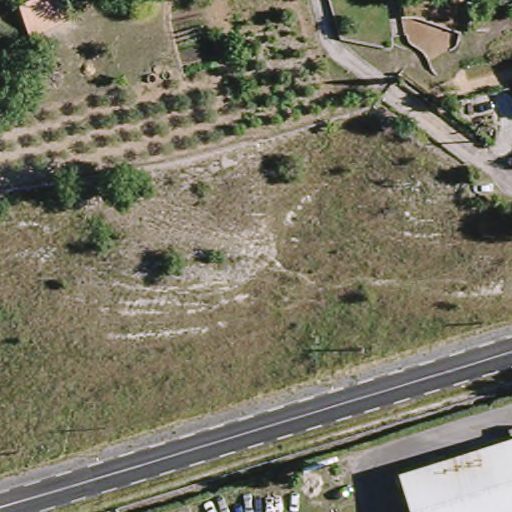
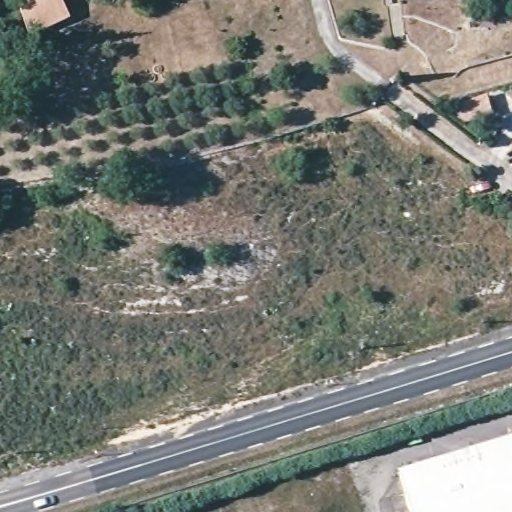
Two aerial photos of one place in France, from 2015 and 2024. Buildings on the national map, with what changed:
unchanged [(24,0),(61,0),(69,20),(35,34),(23,1),(24,0)]
unchanged [(410,512),(398,478),(511,438),(507,428),(512,426),(512,512),(410,512)]

